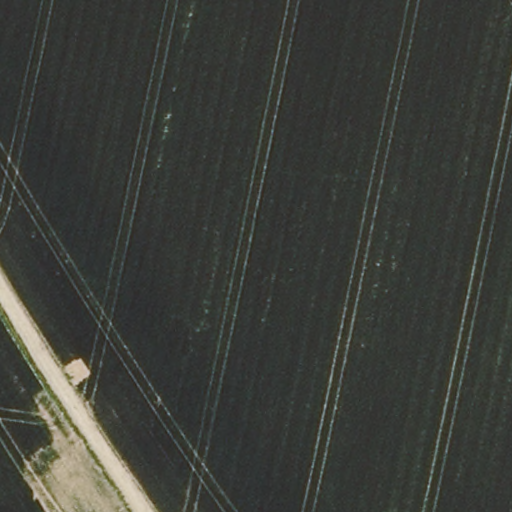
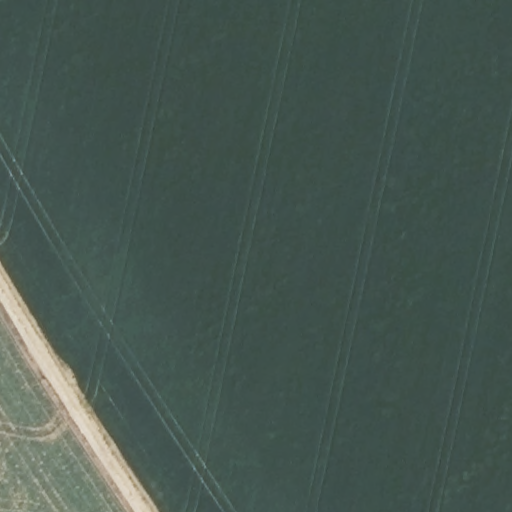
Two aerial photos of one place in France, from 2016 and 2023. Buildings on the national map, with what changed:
[]

